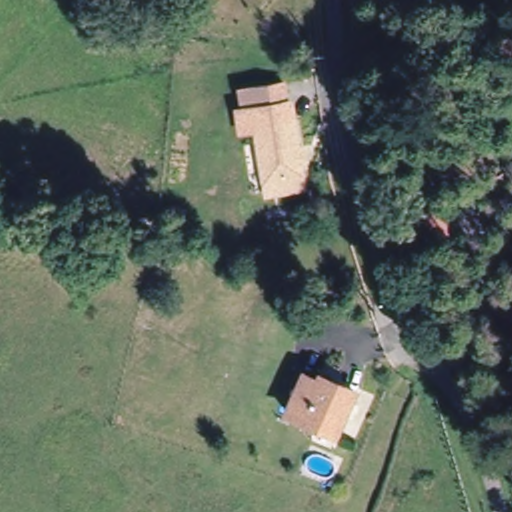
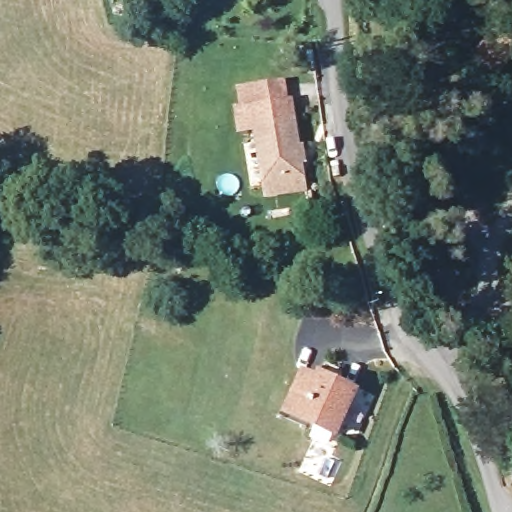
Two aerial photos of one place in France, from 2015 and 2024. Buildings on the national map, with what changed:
unchanged [(497,29),(511,44),(482,71),(468,57),(497,29)]
unchanged [(260,177),(260,155),(261,106),(242,105),(242,87),(296,90),(295,156),(295,178),(260,177)]
unchanged [(425,269),(444,261),(453,280),(435,289),(425,269)]
unchanged [(315,384),(333,393),(336,387),(353,395),(331,442),(282,419),(301,378),(315,384)]

